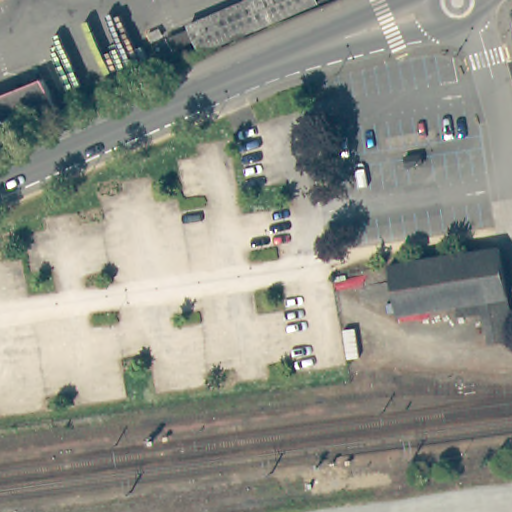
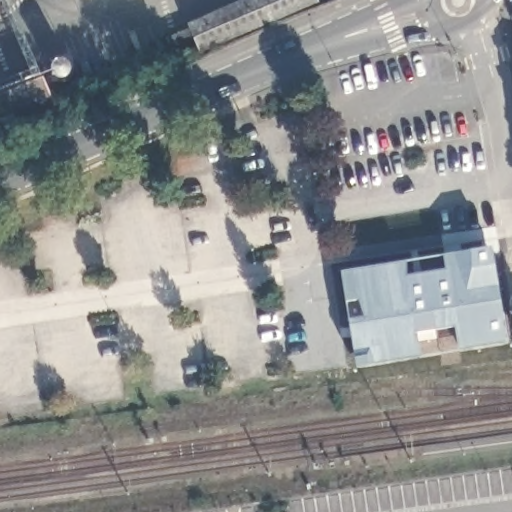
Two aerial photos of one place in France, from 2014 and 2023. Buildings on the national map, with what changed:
unchanged [(164,37),(188,27),(187,23),(242,0),(338,0),(201,58),(193,39),(170,49),(164,37)]
unchanged [(52,119),(0,139),(0,92),(35,78),(52,119)]
new [(492,248),(507,343),(358,368),(341,274),(492,248)]
demolished [(506,298),(498,299),(505,342),(489,344),(482,301),(397,314),(389,265),(497,248),(506,298)]

